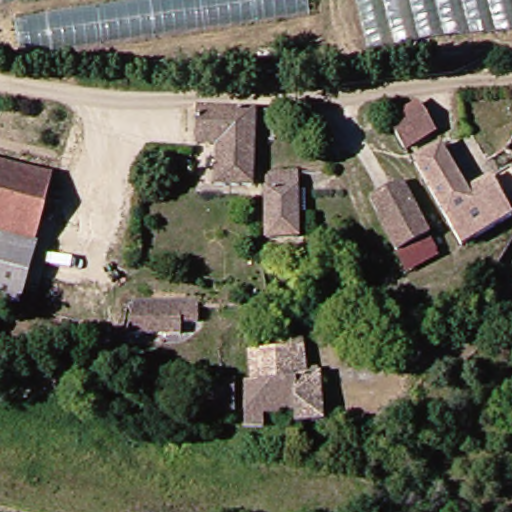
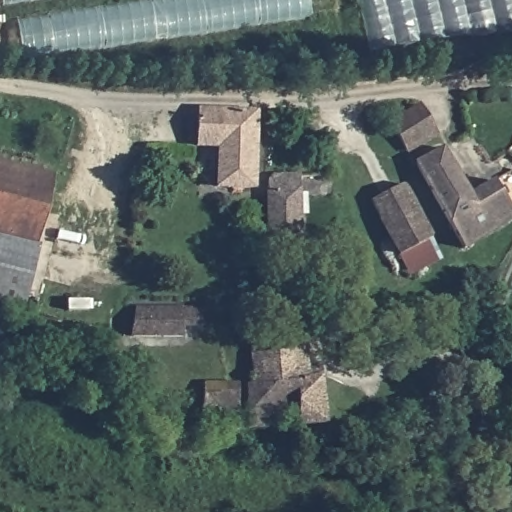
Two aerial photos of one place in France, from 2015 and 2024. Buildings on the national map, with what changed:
unchanged [(45,0),(10,5),(10,0),(45,0)]
unchanged [(166,0),(323,0),(327,18),(33,60),(27,20),(166,0)]
unchanged [(512,0),(512,41),(382,53),(368,0),(512,0)]
unchanged [(200,59),(335,51),(337,69),(203,78),(200,59)]
unchanged [(426,105),(445,133),(417,151),(399,121),(426,105)]
unchanged [(269,113),(264,188),(229,185),(230,144),(210,142),(210,108),(269,113)]
unchanged [(450,152),(484,205),(512,191),(512,229),(475,255),(425,169),(450,152)]
unchanged [(0,231),(0,163),(64,179),(50,245),(0,231)]
unchanged [(309,243),(282,245),(278,179),(310,177),(309,243)]
unchanged [(449,249),(415,267),(385,213),(419,195),(449,249)]
unchanged [(0,255),(0,231),(50,245),(44,267),(0,255)]
unchanged [(31,312),(0,303),(0,255),(44,267),(31,312)]
unchanged [(191,310),(191,338),(137,340),(137,312),(191,310)]
unchanged [(309,378),(308,378),(265,379),(262,351),(314,349),(315,378),(309,378)]
unchanged [(332,377),(335,424),(312,426),(312,416),(309,378),(315,378),(332,377)]
unchanged [(312,416),(279,418),(278,429),(263,429),(260,384),(264,385),(265,379),(308,378),(309,378),(312,416)]
unchanged [(252,386),(254,416),(215,417),(213,389),(252,386)]

